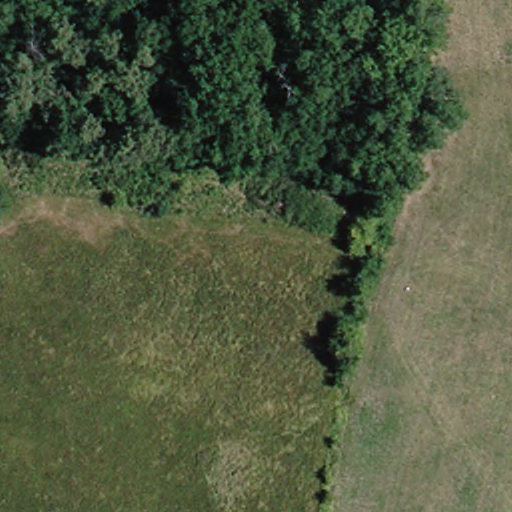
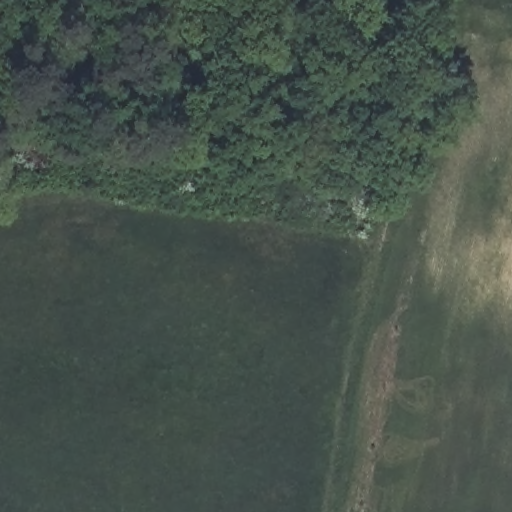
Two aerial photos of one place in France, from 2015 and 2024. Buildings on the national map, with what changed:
[]

